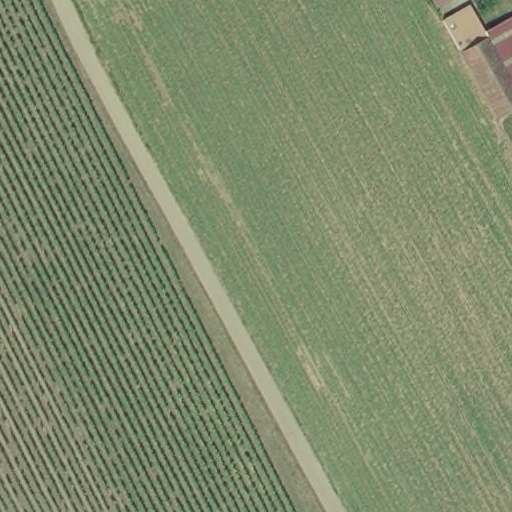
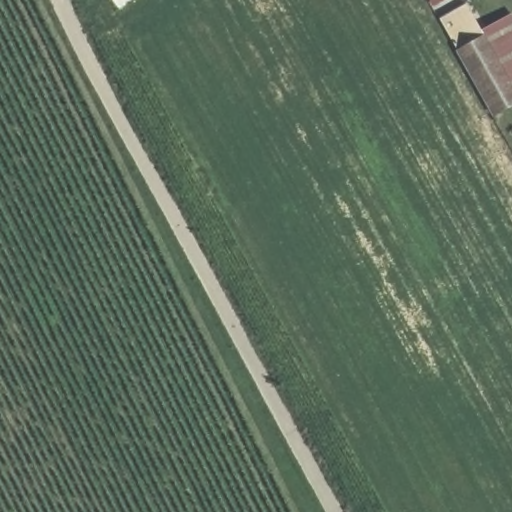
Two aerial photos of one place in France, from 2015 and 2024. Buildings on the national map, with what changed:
unchanged [(483,34),(458,49),(443,18),(471,1),(489,30),(483,34)]
unchanged [(489,30),(512,16),(512,70),(489,30)]
unchanged [(499,116),(458,49),(483,34),(489,30),(512,70),(512,108),(499,116)]

